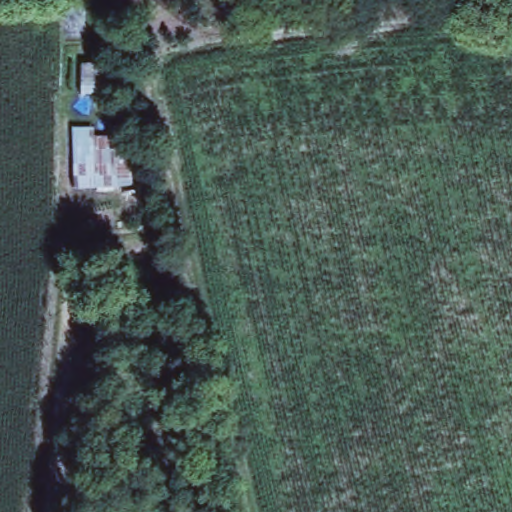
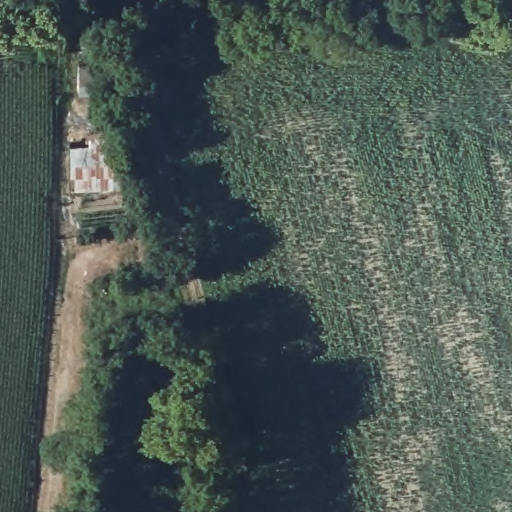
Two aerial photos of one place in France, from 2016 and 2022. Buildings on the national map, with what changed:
unchanged [(74,123),(99,124),(98,161),(138,162),(137,187),(76,188),(74,123)]

